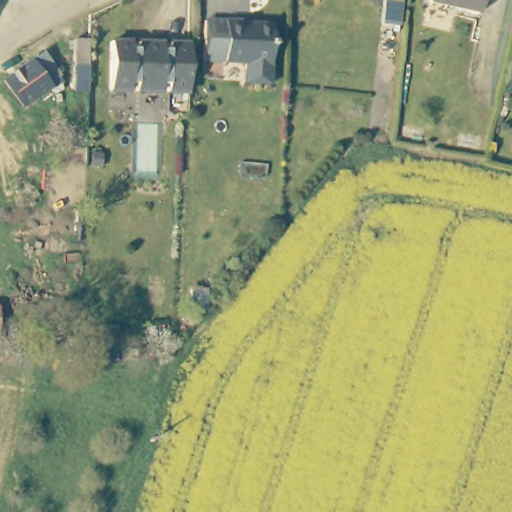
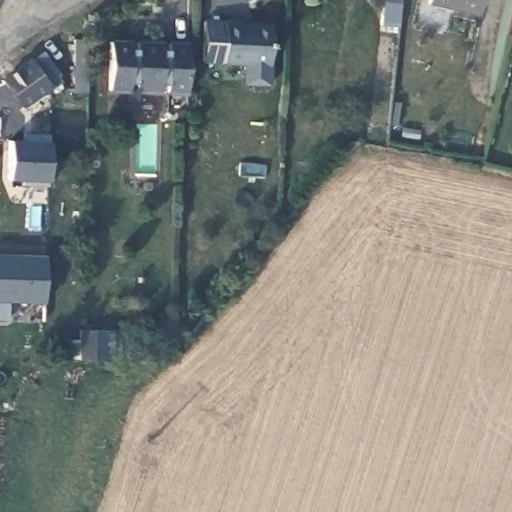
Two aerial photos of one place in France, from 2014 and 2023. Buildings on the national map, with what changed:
unchanged [(402,0),(401,19),(382,17),(384,0),(402,0)]
unchanged [(425,5),(426,0),(479,0),(476,16),(425,5)]
unchanged [(201,24),(219,24),(239,25),(239,30),(269,31),(268,67),(219,67),(200,66),(201,45),(201,24)]
unchanged [(164,40),(164,47),(172,47),(172,41),(191,41),(191,54),(190,92),(170,92),(170,84),(164,84),(164,91),(137,90),(137,82),(131,82),(131,90),(110,90),(111,40),(132,40),(132,47),(138,47),(139,40),(164,40)]
unchanged [(82,71),(70,71),(70,42),(84,42),(82,71)]
unchanged [(52,88),(24,109),(4,80),(29,60),(52,88)]
new [(10,140),(26,141),(26,134),(49,134),(50,144),(49,182),(49,187),(23,186),(21,180),(8,180),(10,140)]
new [(45,304),(7,303),(6,320),(0,320),(0,254),(45,256),(45,304)]
new [(115,362),(78,360),(78,328),(112,329),(115,362)]

